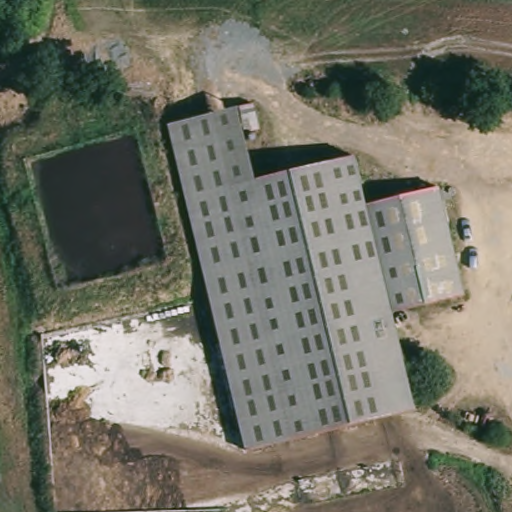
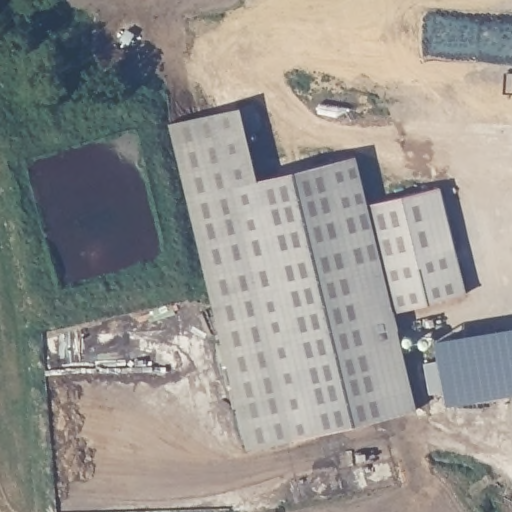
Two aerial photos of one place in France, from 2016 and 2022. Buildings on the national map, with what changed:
unchanged [(272,448),(243,455),(206,304),(164,129),(234,112),(252,184),(351,159),(362,207),(433,190),(451,262),(460,297),(388,314),(412,414),(272,448)]
new [(445,391),(429,393),(425,362),(439,359),(436,338),(512,326),(512,394),(447,404),(445,391)]

